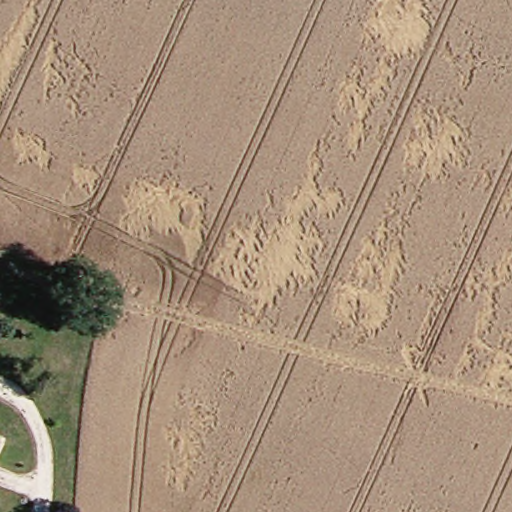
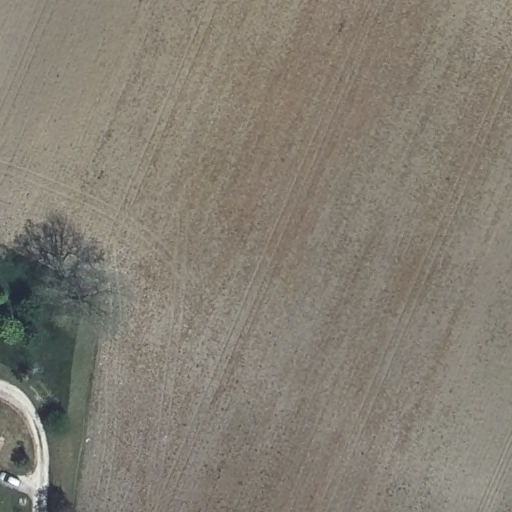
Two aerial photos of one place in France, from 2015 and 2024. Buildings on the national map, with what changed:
unchanged [(0,445),(0,437),(3,438),(0,445)]

